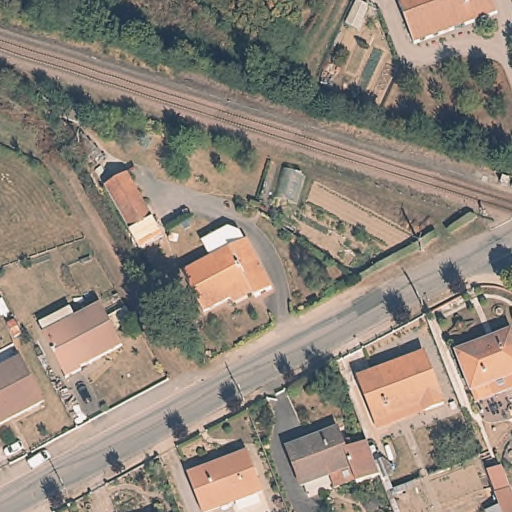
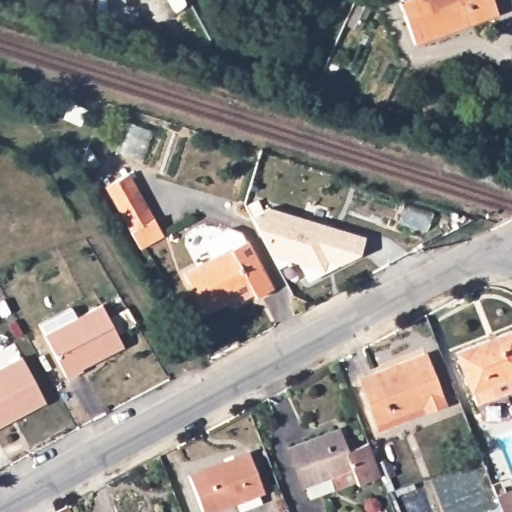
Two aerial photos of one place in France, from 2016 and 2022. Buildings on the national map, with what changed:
unchanged [(419,40),(405,0),(499,0),(502,10),(419,40)]
unchanged [(104,182),(127,169),(162,230),(139,243),(104,182)]
new [(268,207),(364,237),(359,255),(307,282),(299,264),(290,262),(277,268),(251,217),(268,207)]
unchanged [(239,229),(244,237),(246,236),(271,284),(256,292),(253,288),(233,298),(231,293),(204,307),(183,268),(211,254),(203,237),(228,224),(239,229)]
unchanged [(80,363),(81,365),(66,373),(43,330),(45,330),(39,318),(70,302),(76,313),(101,300),(108,313),(126,303),(134,316),(115,327),(122,341),(80,363)]
unchanged [(471,387),(455,348),(511,326),(512,327),(512,385),(476,400),(471,387)]
unchanged [(380,417),(363,374),(429,348),(448,399),(430,406),(383,425),(380,417)]
unchanged [(0,420),(0,364),(21,352),(45,397),(0,420)]
unchanged [(375,466),(352,474),(350,470),(329,478),(324,466),(297,477),(282,438),(331,419),(340,441),(362,432),(375,466)]
unchanged [(249,449),(263,487),(202,509),(188,471),(249,449)]
unchanged [(499,507),(491,485),(500,481),(504,492),(509,491),(512,497),(512,512),(485,512),(499,507)]

